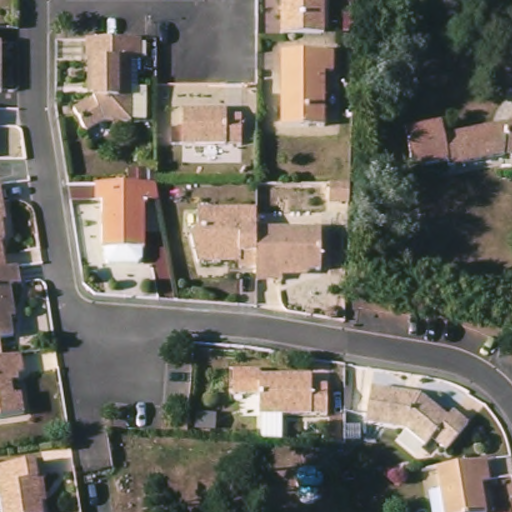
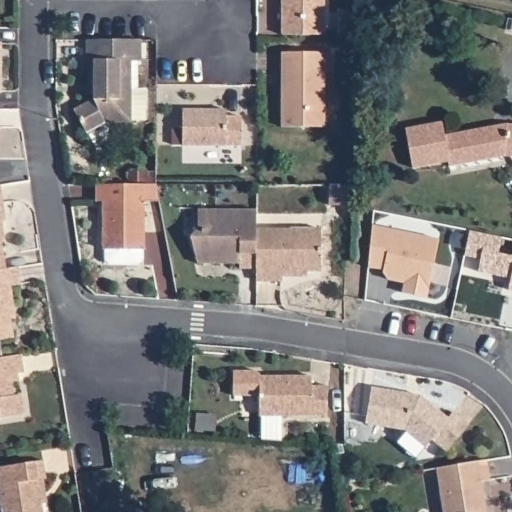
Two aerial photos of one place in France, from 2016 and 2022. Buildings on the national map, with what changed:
unchanged [(326,35),(283,35),(283,0),(326,0),(326,35)]
unchanged [(132,121),(132,123),(104,122),(85,132),(74,110),(96,100),(96,92),(89,92),(90,60),(87,60),(88,40),(104,40),(143,40),(142,61),(139,61),(138,90),(147,90),(146,121),(132,121)]
unchanged [(2,97),(0,97),(0,47),(2,47),(2,97)]
unchanged [(335,73),(327,73),(327,127),(285,127),(285,90),(290,89),(290,53),(335,52),(335,73)]
unchanged [(229,119),(244,119),(242,146),(184,146),(185,110),(229,112),(229,119)]
unchanged [(504,151),(503,158),(448,167),(448,162),(412,169),(405,130),(442,122),(445,136),(492,128),(493,132),(505,131),(505,125),(512,126),(512,152),(504,151)]
unchanged [(133,185),(133,175),(150,175),(150,185),(133,185)]
unchanged [(327,205),(328,184),(350,184),(348,205),(327,205)]
unchanged [(144,251),(144,263),(140,266),(114,266),(107,261),(108,252),(104,251),(106,203),(99,203),(100,187),(149,187),(160,187),(163,204),(149,204),(147,251),(144,251)]
unchanged [(4,205),(0,206),(0,189),(1,189),(4,205)]
unchanged [(242,271),(242,263),(223,264),(223,267),(201,267),(200,240),(204,233),(204,211),(260,212),(259,231),(260,272),(242,271)]
unchanged [(2,241),(6,271),(5,272),(0,273),(0,213),(4,241),(2,241)]
new [(383,272),(367,270),(372,225),(437,240),(426,297),(402,293),(403,282),(387,280),(383,272)]
unchanged [(324,232),(323,275),(282,274),(281,285),(260,285),(260,272),(259,231),(324,232)]
new [(508,291),(510,280),(477,272),(480,260),(464,257),(469,234),(512,242),(512,292),(508,291)]
unchanged [(12,288),(17,318),(11,320),(15,339),(0,341),(0,273),(5,272),(6,271),(20,270),(22,286),(12,288)]
unchanged [(20,382),(11,383),(14,399),(22,398),(25,416),(0,420),(0,360),(24,356),(25,375),(20,375),(20,382)]
unchanged [(262,442),(263,434),(265,413),(263,413),(266,375),(318,378),(317,387),(333,389),(330,420),(285,415),(282,436),(282,444),(262,442)]
unchanged [(406,396),(406,401),(417,403),(421,398),(448,420),(453,413),(470,425),(447,455),(432,443),(425,451),(405,435),(366,428),(373,390),(406,396)]
unchanged [(194,426),(195,411),(210,412),(209,428),(194,426)]
unchanged [(485,481),(489,512),(446,512),(440,467),(489,459),(492,480),(485,481)]
unchanged [(0,470),(46,464),(49,482),(40,483),(44,512),(4,512),(0,485),(0,470)]

